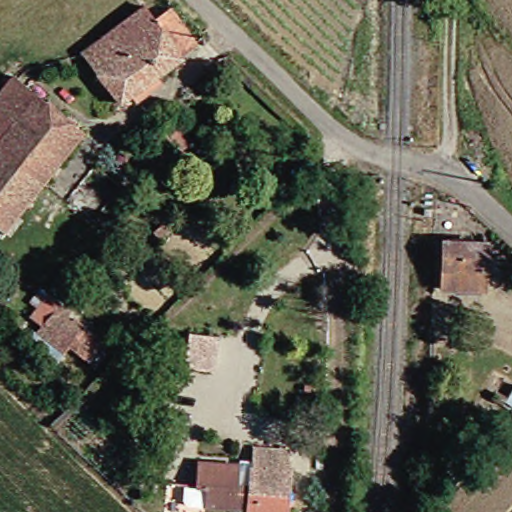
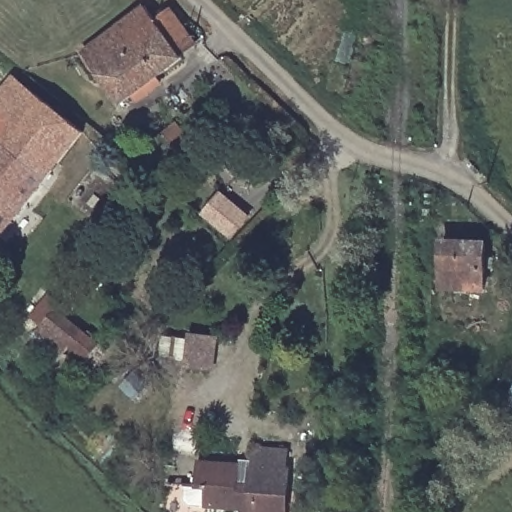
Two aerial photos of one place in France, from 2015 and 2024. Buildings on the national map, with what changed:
unchanged [(189,39),(174,50),(176,53),(114,99),(77,47),(139,2),(147,14),(162,2),(189,39)]
unchanged [(2,232),(0,230),(0,137),(13,121),(0,110),(0,93),(13,76),(83,132),(2,232)]
unchanged [(13,121),(0,137),(0,110),(13,121)]
unchanged [(188,138),(177,148),(163,132),(174,122),(188,138)]
new [(253,218),(232,242),(201,216),(222,192),(253,218)]
unchanged [(442,242),(476,246),(472,282),(471,290),(438,286),(438,283),(442,242)]
unchanged [(56,360),(29,337),(40,324),(30,316),(37,307),(29,301),(40,288),(69,312),(65,317),(97,344),(85,360),(69,346),(56,360)]
unchanged [(212,370),(185,367),(189,335),(216,338),(212,370)]
unchanged [(194,487),(196,462),(238,464),(237,491),(250,492),(252,447),(286,448),(285,468),(287,468),(285,512),(248,512),(248,508),(204,506),(193,505),(194,487)]

